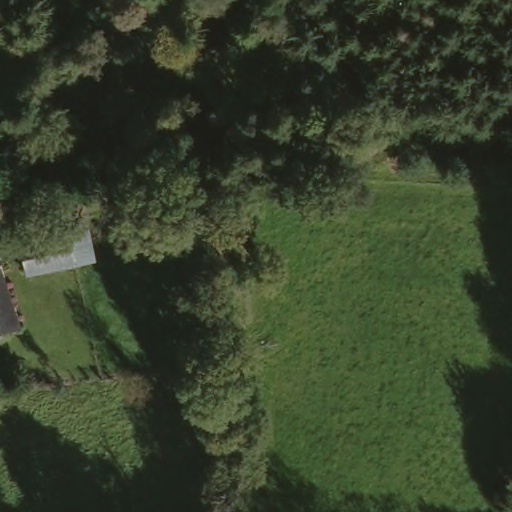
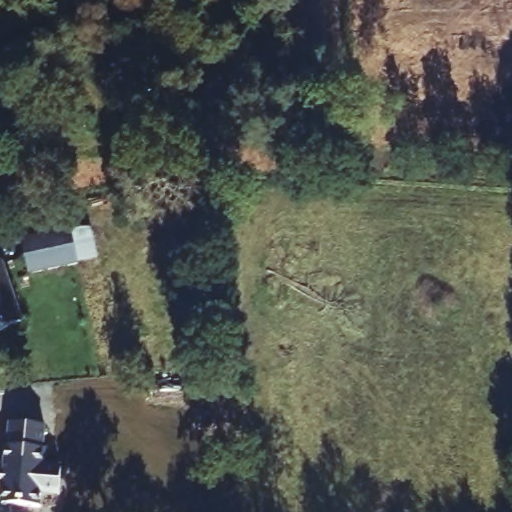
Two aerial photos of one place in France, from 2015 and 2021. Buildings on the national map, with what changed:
unchanged [(30,269),(24,234),(72,227),(76,262),(30,269)]
unchanged [(2,263),(17,320),(0,325),(0,264),(2,263)]
new [(5,463),(6,443),(9,443),(10,420),(44,422),(42,446),(44,446),(42,463),(61,465),(59,491),(41,490),(40,503),(2,501),(2,485),(0,485),(0,463),(5,463)]

